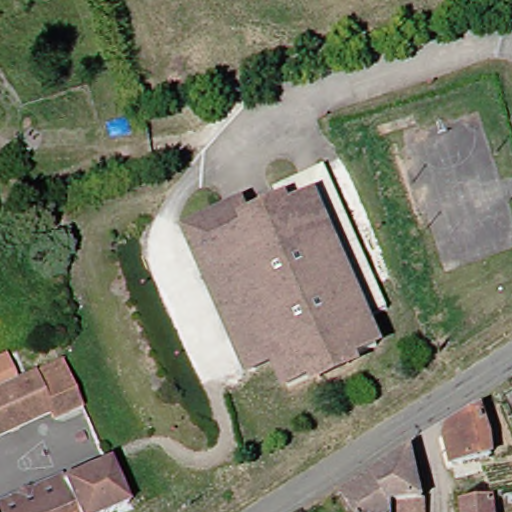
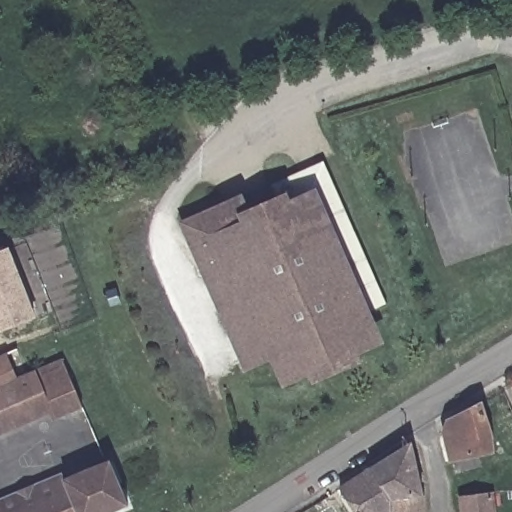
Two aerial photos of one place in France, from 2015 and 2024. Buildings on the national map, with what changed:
demolished [(369,176),(377,174),(375,168),(383,166),(385,172),(388,171),(392,185),(382,188),(386,203),(377,205),(369,176)]
unchanged [(373,358),(285,398),(273,371),(250,381),(234,344),(231,344),(227,344),(225,342),(222,340),(221,337),(220,334),(220,331),(221,328),(222,326),(225,323),(186,238),(240,214),(245,225),(273,213),(268,202),(320,179),(346,240),(383,322),(367,329),(361,332),(373,358)]
unchanged [(0,217),(0,197),(5,216),(0,217)]
new [(35,318),(0,332),(0,249),(7,247),(35,318)]
unchanged [(15,382),(65,362),(70,375),(42,387),(54,412),(0,435),(0,359),(6,357),(15,382)]
unchanged [(70,375),(83,407),(56,418),(54,412),(42,387),(70,375)]
unchanged [(446,433),(451,421),(483,405),(491,431),(489,453),(453,460),(446,433)]
unchanged [(347,484),(418,439),(430,489),(430,492),(431,512),(365,512),(347,484)]
unchanged [(71,480),(115,461),(135,505),(118,512),(0,512),(0,504),(69,475),(71,480)]
unchanged [(463,497),(495,494),(497,512),(465,512),(463,497)]

